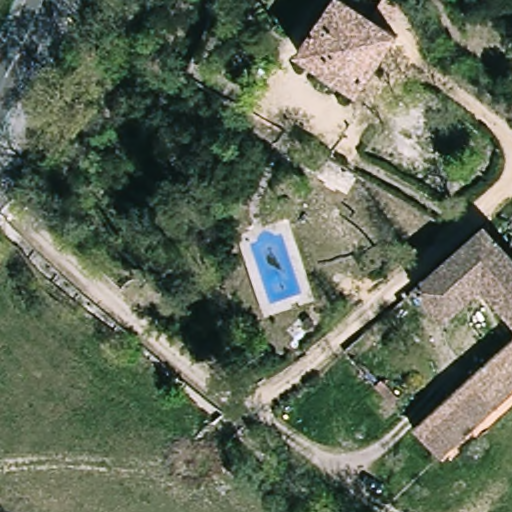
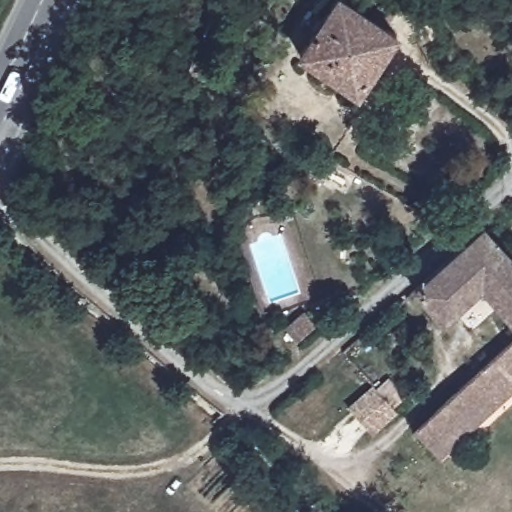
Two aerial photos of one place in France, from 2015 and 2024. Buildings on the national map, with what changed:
unchanged [(336,0),(344,0),(397,36),(357,94),(299,55),(336,0)]
unchanged [(449,325),(419,290),(490,229),(512,254),(512,318),(487,290),(449,325)]
unchanged [(484,423),(459,395),(512,347),(512,397),(509,400),(484,423)]
new [(399,414),(373,436),(348,407),(387,373),(407,396),(395,410),(399,414)]
unchanged [(444,459),(419,430),(459,395),(484,423),(444,459)]

